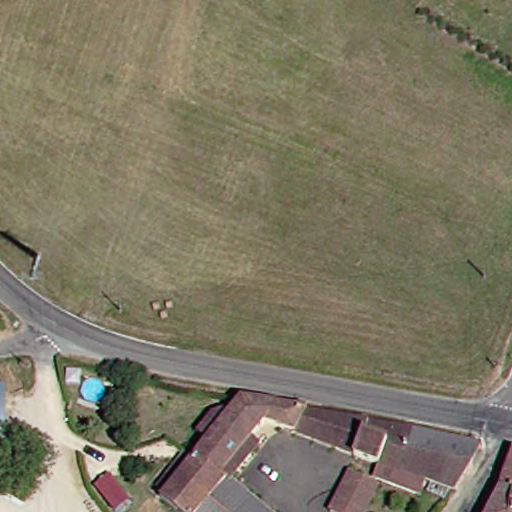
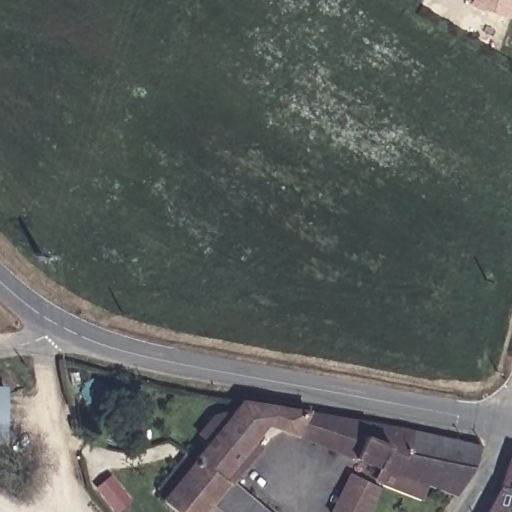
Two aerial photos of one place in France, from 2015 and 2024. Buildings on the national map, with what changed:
new [(470,6),(472,0),(512,0),(512,16),(511,19),(470,6)]
unchanged [(128,304),(125,314),(115,312),(117,301),(128,304)]
unchanged [(6,388),(6,443),(0,443),(0,388),(6,388)]
unchanged [(158,502),(202,445),(195,437),(213,412),(225,418),(239,403),(305,413),(482,451),(452,497),(380,470),(355,459),(295,437),(263,428),(250,441),(260,449),(229,482),(201,512),(170,512),(158,502)]
unchanged [(512,466),(512,504),(496,498),(512,466)]
unchanged [(346,476),(378,489),(368,512),(328,512),(346,476)]
unchanged [(229,482),(262,512),(201,512),(229,482)]
unchanged [(512,512),(486,512),(496,498),(512,504),(512,512)]

